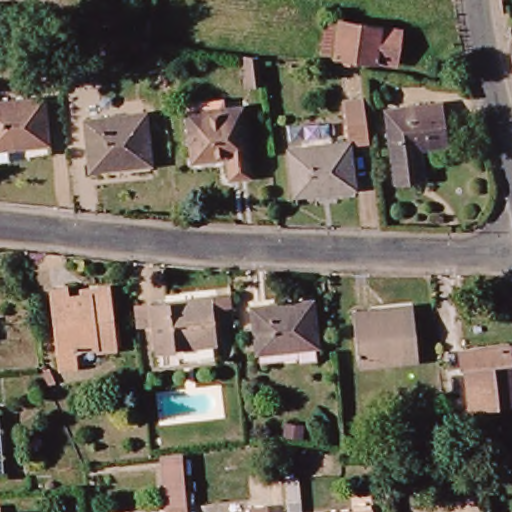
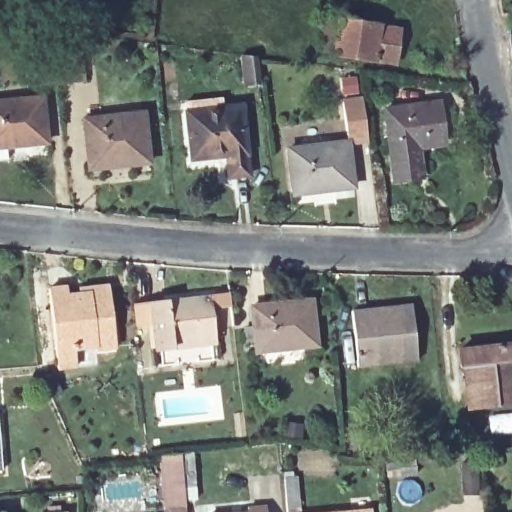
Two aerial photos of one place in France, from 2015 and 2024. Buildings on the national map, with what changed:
unchanged [(0,7),(0,0),(1,0),(1,7),(0,7)]
unchanged [(385,62),(326,54),(331,17),(390,24),(385,62)]
unchanged [(508,40),(512,40),(512,65),(508,40)]
unchanged [(234,55),(251,57),(256,84),(239,84),(234,55)]
unchanged [(36,70),(54,69),(57,102),(37,103),(36,70)]
unchanged [(342,102),(345,101),(345,93),(362,91),(362,101),(367,141),(345,144),(342,102)]
unchanged [(392,184),(382,109),(438,101),(443,136),(417,141),(423,180),(392,184)]
unchanged [(0,157),(0,113),(36,109),(41,153),(0,157)]
unchanged [(221,158),(186,161),(182,114),(235,109),(242,174),(222,175),(221,158)]
unchanged [(147,162),(85,167),(81,118),(143,112),(147,162)]
unchanged [(289,189),(286,148),(345,144),(348,186),(289,189)]
unchanged [(74,349),(77,368),(59,367),(47,284),(66,283),(67,288),(110,284),(117,344),(74,349)]
unchanged [(207,343),(150,349),(145,306),(202,299),(207,343)]
unchanged [(310,299),(314,339),(259,346),(255,304),(310,299)]
unchanged [(410,314),(415,354),(356,362),(351,312),(367,310),(367,319),(410,314)]
unchanged [(461,368),(459,350),(507,345),(512,394),(512,403),(471,408),(466,367),(461,368)]
unchanged [(306,499),(286,499),(285,473),(302,473),(306,499)]
unchanged [(175,512),(155,512),(155,509),(175,509),(175,512)]
unchanged [(368,511),(369,512),(341,512),(368,511)]

